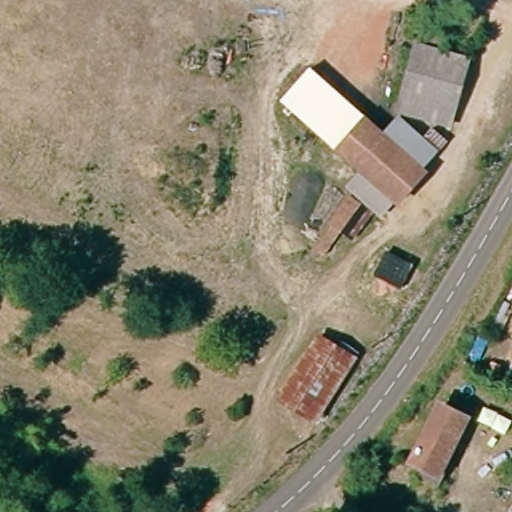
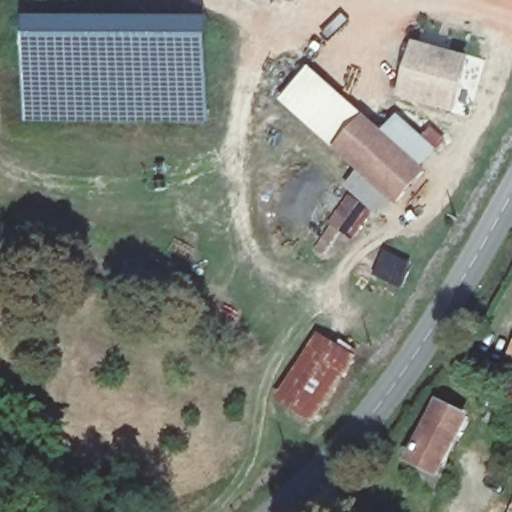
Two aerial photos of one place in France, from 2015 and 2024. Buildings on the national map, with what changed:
new [(210,18),(209,120),(27,120),(28,16),(210,18)]
unchanged [(469,64),(455,116),(437,112),(403,103),(415,51),(456,61),(469,64)]
unchanged [(340,149),(278,99),(310,66),(368,116),(340,149)]
unchanged [(353,192),(349,190),(362,173),(337,153),(340,149),(368,116),(388,135),(401,119),(426,135),(435,129),(455,147),(444,159),(432,175),(402,207),(378,217),(357,242),(332,221),(353,192)]
unchanged [(358,369),(317,420),(284,394),(308,364),(325,342),(358,369)]
unchanged [(512,408),(474,392),(481,376),(512,390),(512,408)]
unchanged [(468,416),(443,473),(416,461),(441,404),(468,416)]

